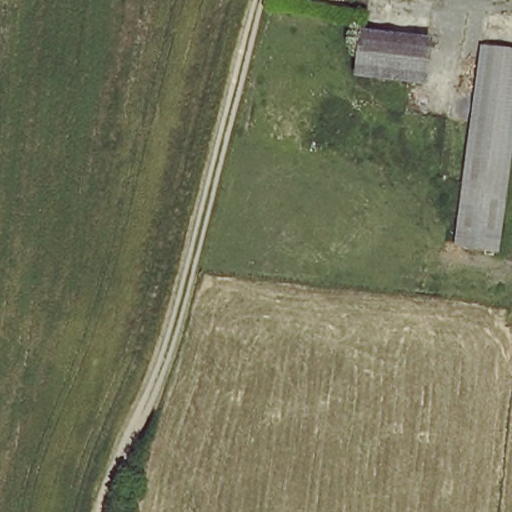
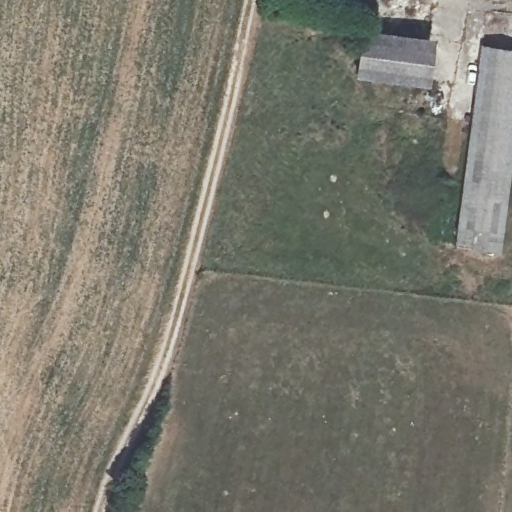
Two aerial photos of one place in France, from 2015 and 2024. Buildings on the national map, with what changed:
unchanged [(423,88),(350,84),(358,29),(431,39),(423,88)]
unchanged [(485,46),(512,49),(512,151),(500,252),(460,247),(480,88),(485,46)]

